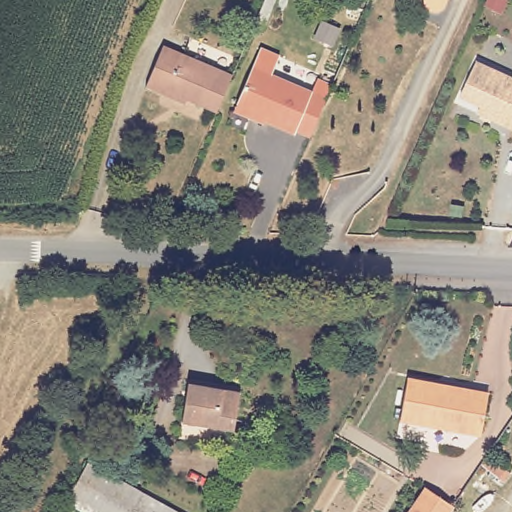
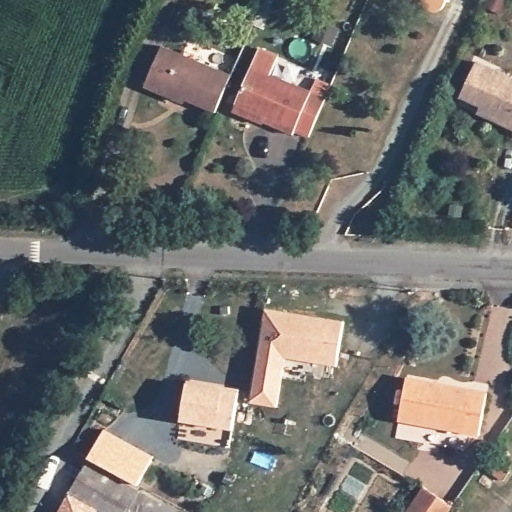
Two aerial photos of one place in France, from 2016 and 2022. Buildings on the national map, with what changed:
unchanged [(445,12),(438,13),(431,10),(427,5),(426,0),(455,0),(451,9),(445,12)]
unchanged [(176,94),(175,99),(143,85),(158,43),(231,73),(214,111),(176,94)]
unchanged [(234,104),(258,48),(276,55),(268,75),(309,91),(315,76),(330,82),(307,136),(291,130),(290,134),(268,126),(269,124),(260,121),(231,111),(234,104)]
unchanged [(498,116),(500,110),(467,96),(482,60),(512,73),(512,122),(498,116)]
new [(265,309),(343,322),(336,366),(284,358),(275,407),(249,402),(265,309)]
unchanged [(481,436),(400,421),(407,381),(487,397),(481,436)]
unchanged [(228,430),(179,420),(185,383),(235,392),(228,430)]
unchanged [(87,463),(177,512),(103,512),(71,495),(87,463)]
unchanged [(423,489),(451,510),(450,512),(407,512),(423,489)]

